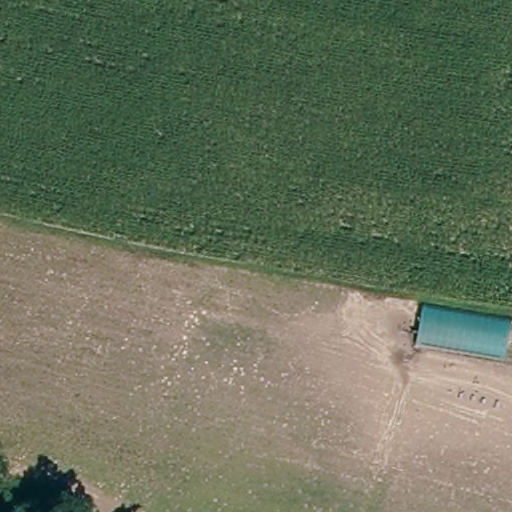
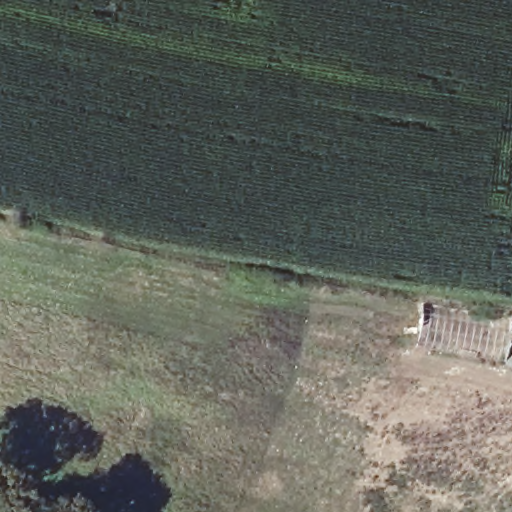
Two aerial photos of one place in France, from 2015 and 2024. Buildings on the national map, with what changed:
demolished [(506,357),(419,345),(427,305),(512,324),(506,357)]

